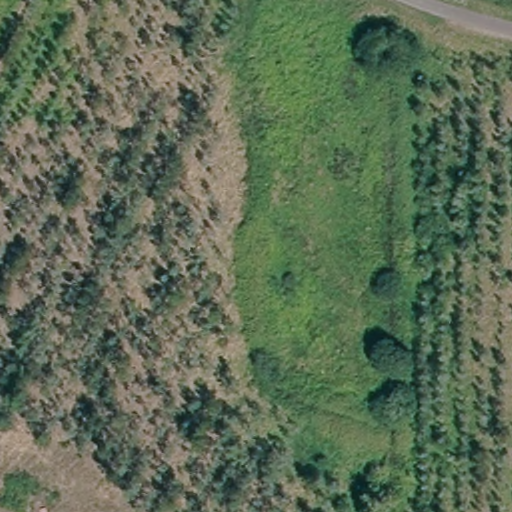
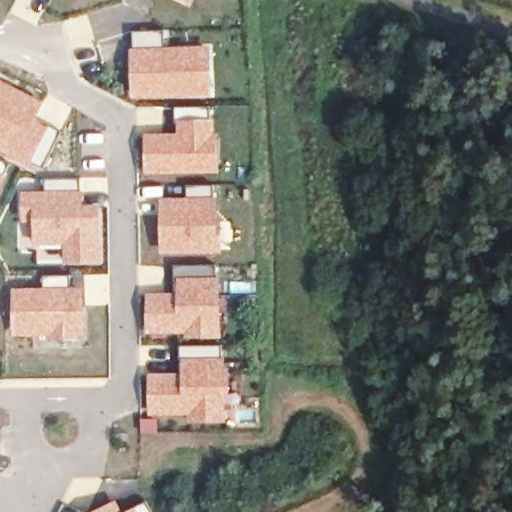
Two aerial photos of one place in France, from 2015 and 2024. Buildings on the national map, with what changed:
new [(188,1),(186,0),(196,0),(194,4),(188,1)]
new [(132,46),(131,30),(163,29),(164,45),(211,44),(214,96),(130,99),(129,46),(132,46)]
new [(47,94),(71,106),(60,129),(41,167),(30,163),(29,165),(0,151),(0,78),(44,99),(47,94)]
new [(144,133),(175,131),(174,105),(212,105),(212,118),(216,118),(219,172),(144,174),(144,133)]
new [(0,186),(0,170),(5,172),(0,186)]
new [(46,179),(81,178),(81,195),(85,195),(86,208),(98,208),(99,259),(68,259),(68,242),(37,242),(37,219),(26,219),(25,194),(46,194),(46,179)]
new [(224,249),(215,249),(165,250),(164,201),(181,201),(181,202),(188,202),(188,184),(215,184),(215,220),(223,221),(224,249)]
new [(150,330),(150,296),(175,297),(175,283),(175,265),(218,264),(218,280),(219,280),(219,320),(219,335),(189,335),(189,330),(150,330)]
new [(43,275),(69,274),(69,285),(84,285),(84,274),(109,274),(109,304),(84,304),(84,338),(12,336),(11,288),(43,287),(43,275)]
new [(194,419),(194,412),(153,412),(153,376),(181,376),(181,362),(181,345),(224,344),(224,402),(224,419),(194,419)]
new [(116,499),(123,512),(89,512),(116,499)]
new [(145,502),(150,512),(123,512),(145,502)]

